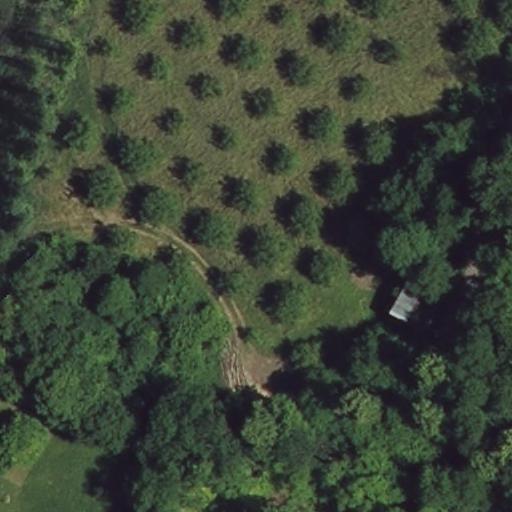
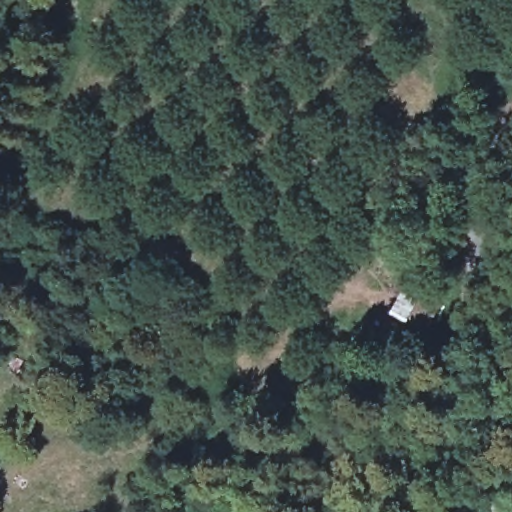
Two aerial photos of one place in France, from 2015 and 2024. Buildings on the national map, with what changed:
unchanged [(429,327),(411,316),(402,311),(422,276),(429,280),(450,292),(429,327)]

